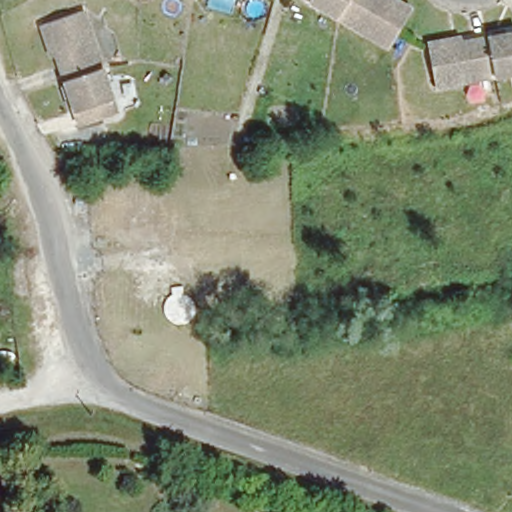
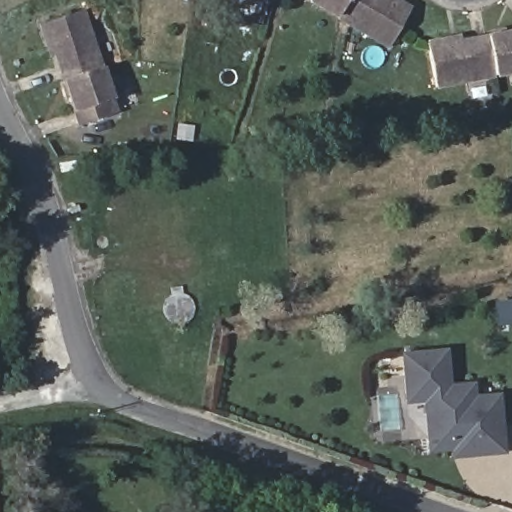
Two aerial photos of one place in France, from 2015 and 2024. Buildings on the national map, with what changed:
unchanged [(338,0),(331,10),(314,0),(338,0)]
unchanged [(399,0),(408,5),(384,44),(331,10),(338,0),(399,0)]
unchanged [(52,48),(50,43),(44,44),(39,22),(44,20),(79,9),(97,68),(60,79),(52,48)]
unchanged [(512,26),(512,67),(494,71),(485,32),(512,26)]
unchanged [(432,86),(424,42),(447,36),(448,40),(485,32),(494,71),(432,86)]
unchanged [(60,79),(97,68),(111,114),(73,124),(60,79)]
new [(453,450),(430,453),(425,403),(407,405),(401,353),(449,348),(454,384),(478,381),(479,395),(502,393),(509,454),(454,459),(453,450)]
unchanged [(1,512),(0,512),(0,508),(1,512)]

